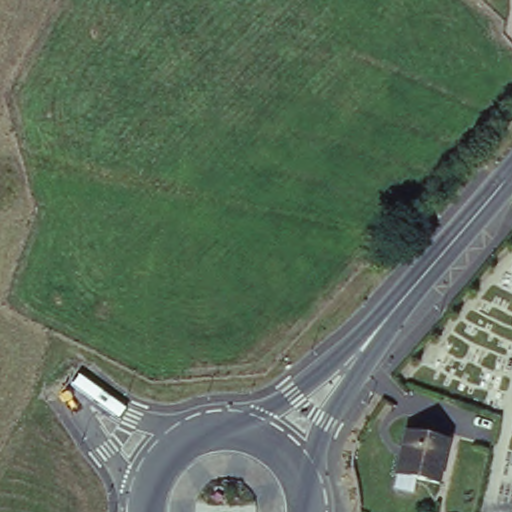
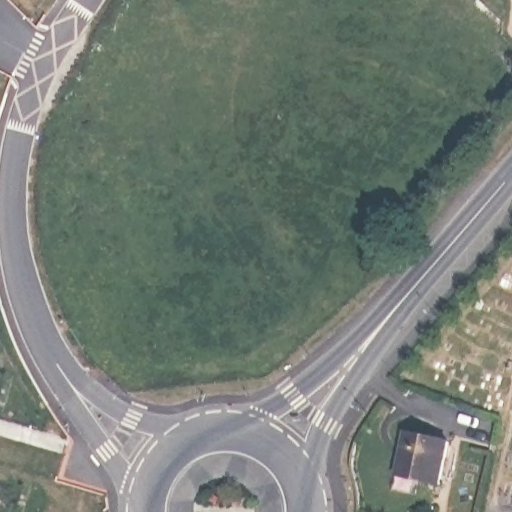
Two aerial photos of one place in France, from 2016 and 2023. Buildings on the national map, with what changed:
unchanged [(409,428),(453,437),(443,482),(401,473),(409,428)]

